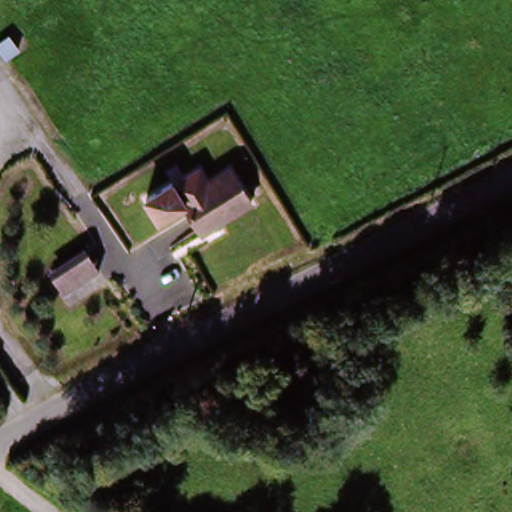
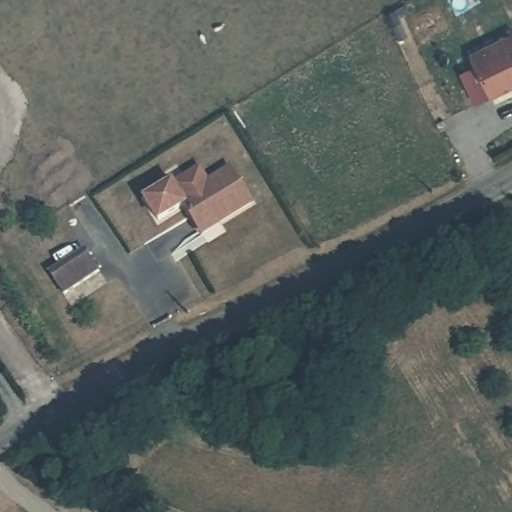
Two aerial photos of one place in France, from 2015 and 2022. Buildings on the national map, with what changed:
new [(468,51),(512,33),(512,84),(486,95),(468,51)]
unchanged [(199,167),(208,179),(231,164),(257,205),(201,238),(184,212),(159,228),(143,199),(199,167)]
unchanged [(63,297),(47,272),(82,251),(98,276),(63,297)]

